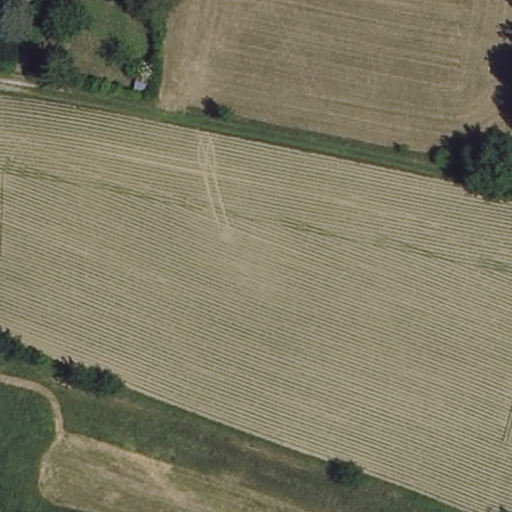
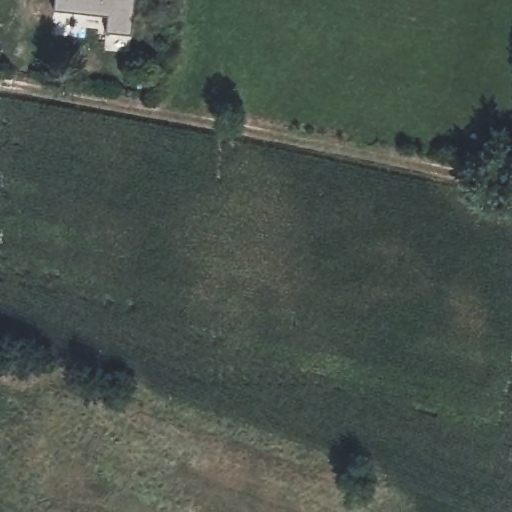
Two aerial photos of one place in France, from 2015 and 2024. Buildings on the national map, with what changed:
new [(105,33),(107,16),(53,11),(54,0),(135,0),(131,36),(105,33)]

